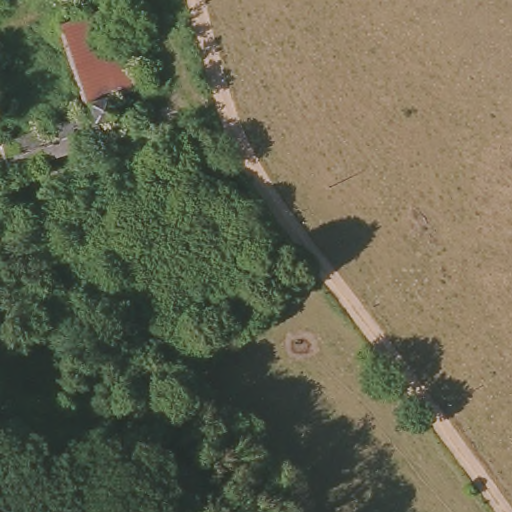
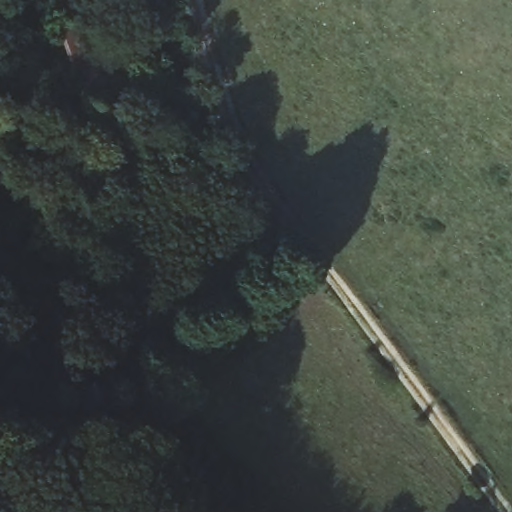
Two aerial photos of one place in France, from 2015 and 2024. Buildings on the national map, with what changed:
unchanged [(87,17),(108,11),(135,89),(113,97),(87,17)]
unchanged [(56,27),(87,17),(113,97),(106,99),(118,138),(0,179),(0,147),(86,116),(56,27)]

